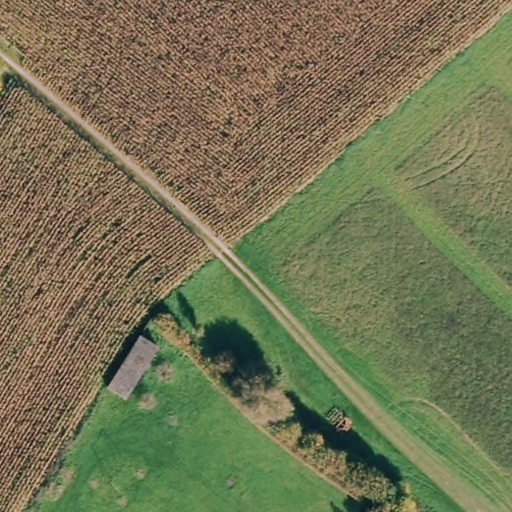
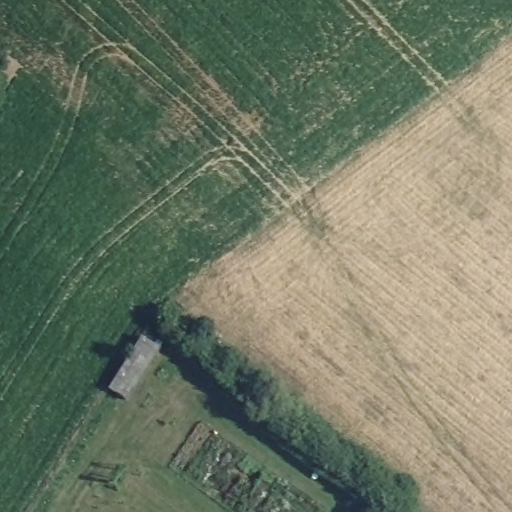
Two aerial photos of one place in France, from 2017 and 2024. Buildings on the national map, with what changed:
unchanged [(142,336),(160,348),(127,397),(109,383),(142,336)]

